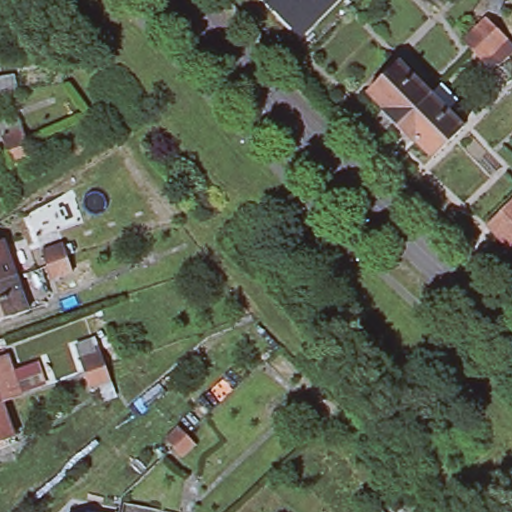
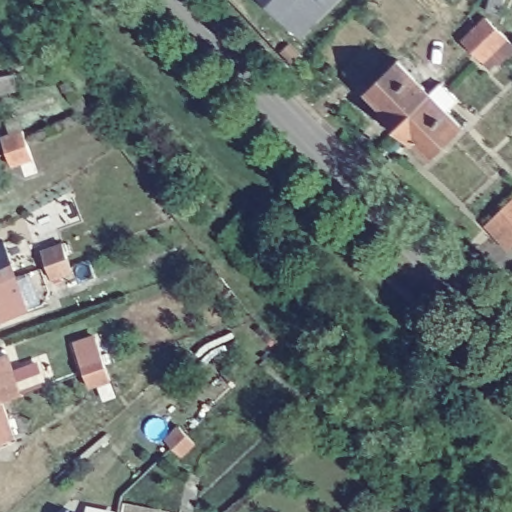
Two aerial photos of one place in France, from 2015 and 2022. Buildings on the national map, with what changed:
unchanged [(266,0),(331,0),(312,20),(299,32),(281,15),(266,0)]
unchanged [(489,20),(495,0),(510,0),(503,24),(489,20)]
unchanged [(475,59),(467,50),(482,35),(491,26),(511,47),(502,55),(487,70),(475,59)]
unchanged [(380,110),(382,108),(365,90),(395,60),(427,91),(393,125),(380,110)]
unchanged [(12,71),(14,86),(0,89),(0,74),(12,71)]
unchanged [(461,125),(431,156),(414,140),(411,142),(393,125),(427,91),(461,125)]
unchanged [(11,164),(6,149),(1,135),(23,129),(27,142),(32,156),(11,164)]
unchanged [(481,225),(512,196),(512,246),(504,252),(481,225)]
unchanged [(4,239),(15,273),(0,278),(0,240),(4,239)]
unchanged [(48,276),(44,263),(40,247),(62,241),(66,255),(70,270),(48,276)]
unchanged [(27,309),(0,318),(0,278),(15,273),(27,309)]
unchanged [(115,397),(107,399),(104,401),(98,386),(89,388),(74,343),(93,338),(115,397)]
unchanged [(5,358),(19,400),(2,406),(13,440),(0,444),(0,360),(5,358)]
unchanged [(181,455),(172,445),(164,439),(177,425),(185,433),(194,442),(181,455)]

